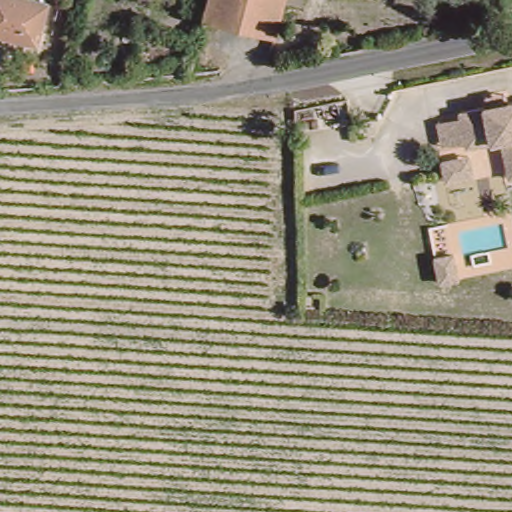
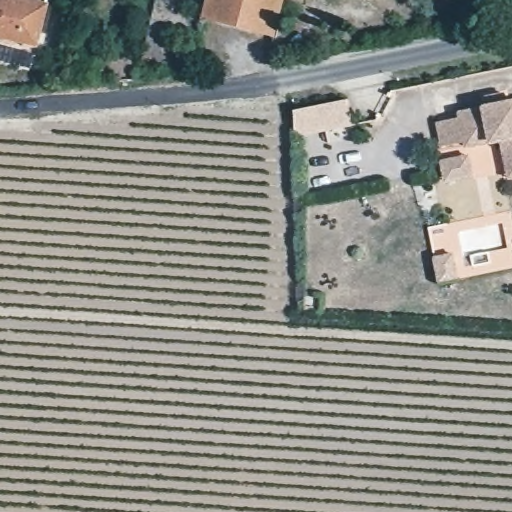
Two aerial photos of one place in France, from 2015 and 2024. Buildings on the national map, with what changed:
unchanged [(0,41),(0,0),(18,0),(40,6),(30,49),(0,41)]
unchanged [(201,17),(205,0),(283,0),(274,34),(201,17)]
new [(298,139),(292,110),(350,98),(356,127),(298,139)]
unchanged [(501,136),(467,145),(473,180),(448,185),(433,124),(461,115),(461,109),(512,102),(512,176),(509,177),(501,136)]

